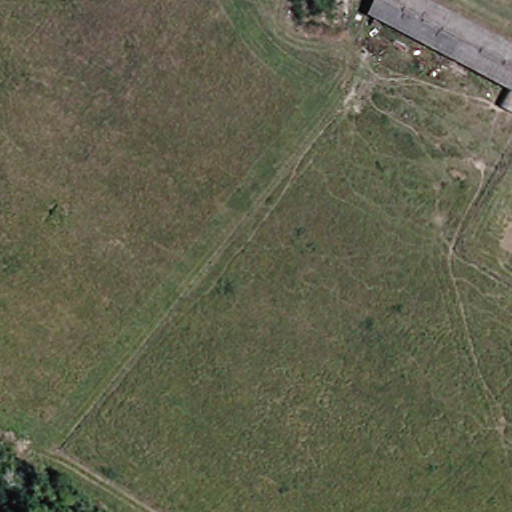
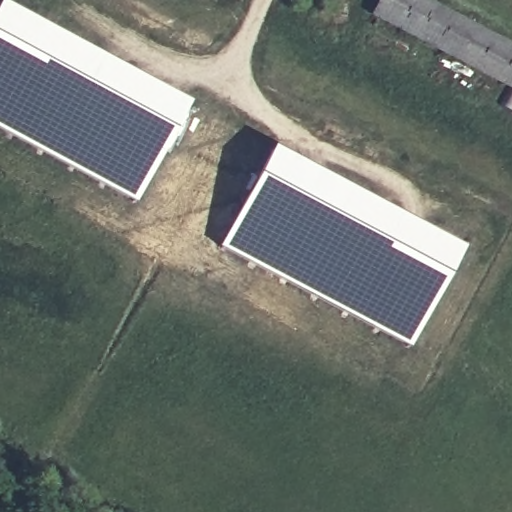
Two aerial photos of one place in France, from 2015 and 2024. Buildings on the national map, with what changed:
new [(139,196),(0,123),(0,9),(5,0),(8,0),(194,99),(139,196)]
unchanged [(357,14),(362,0),(410,0),(512,48),(512,91),(357,14)]
new [(469,246),(415,347),(227,248),(280,145),(469,246)]

